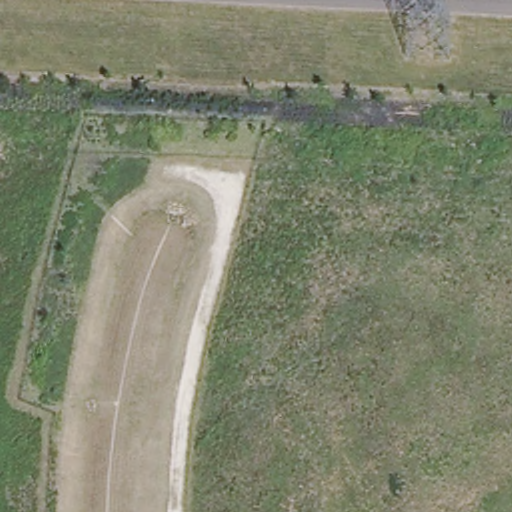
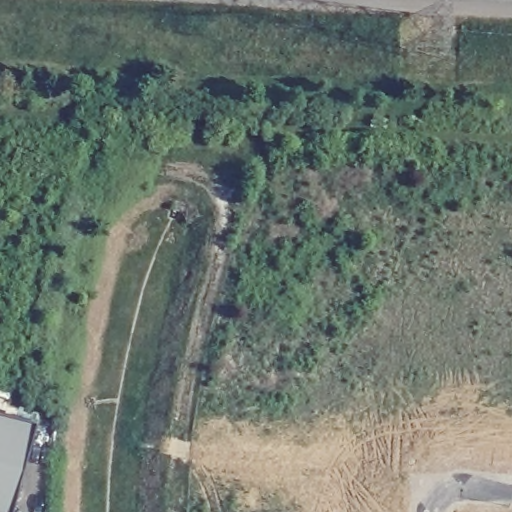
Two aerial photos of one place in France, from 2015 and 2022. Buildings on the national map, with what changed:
new [(0,512),(0,420),(34,429),(13,512),(0,512)]

